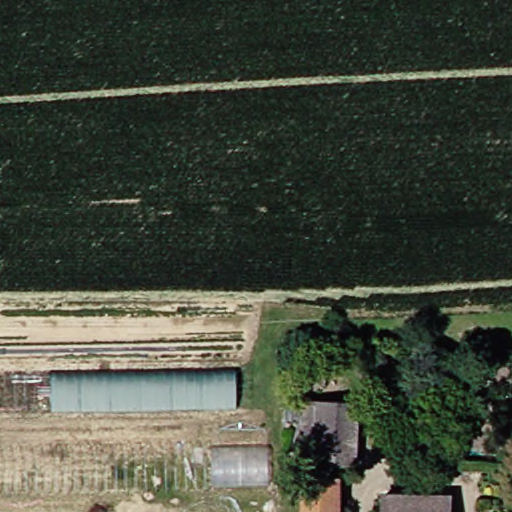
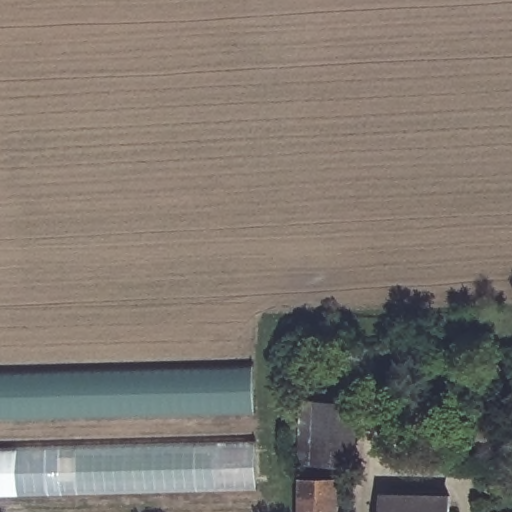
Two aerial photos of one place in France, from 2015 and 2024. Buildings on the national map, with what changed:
unchanged [(239,366),(240,406),(0,408),(0,370),(239,366)]
unchanged [(361,450),(303,447),(305,386),(363,387),(361,450)]
new [(255,443),(257,489),(0,495),(0,448),(255,443)]
unchanged [(341,512),(307,512),(307,479),(341,480),(341,512)]
unchanged [(450,494),(450,512),(386,512),(386,493),(450,494)]

